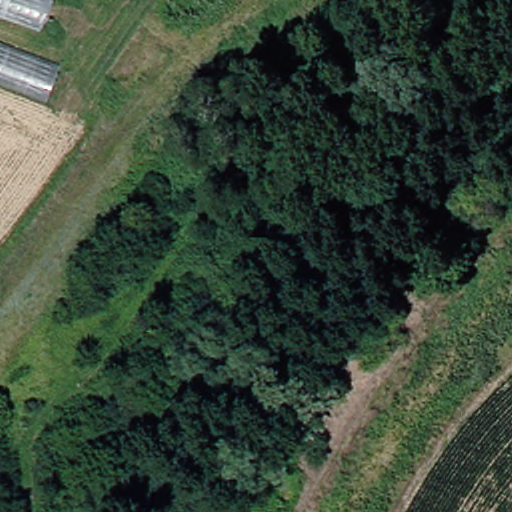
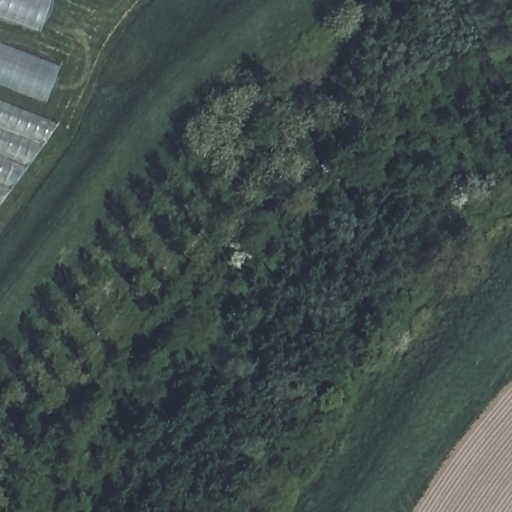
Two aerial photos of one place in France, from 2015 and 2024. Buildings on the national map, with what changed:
unchanged [(0,0),(38,0),(28,29),(0,19),(0,0)]
unchanged [(0,46),(50,65),(35,97),(0,84),(0,46)]
new [(0,104),(58,126),(0,204),(0,104)]

